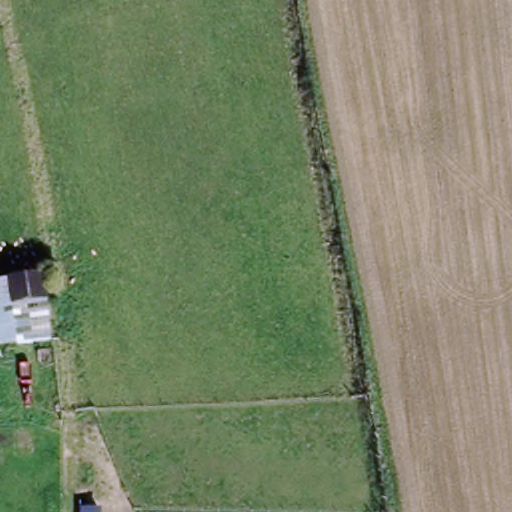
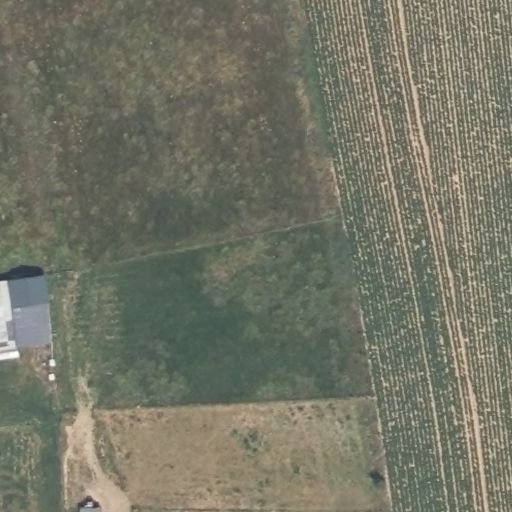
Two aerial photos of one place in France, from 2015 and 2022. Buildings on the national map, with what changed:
unchanged [(55,345),(0,351),(0,286),(46,278),(55,345)]

